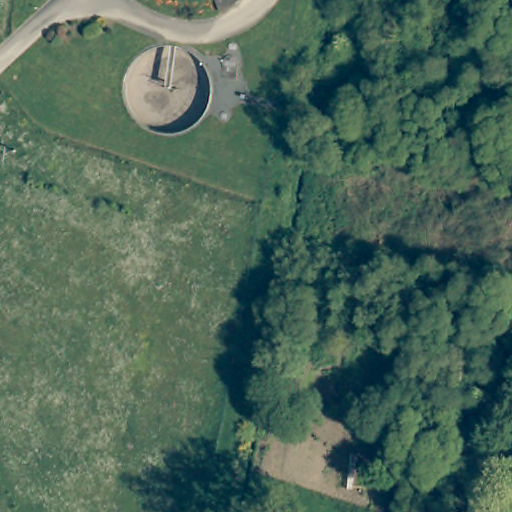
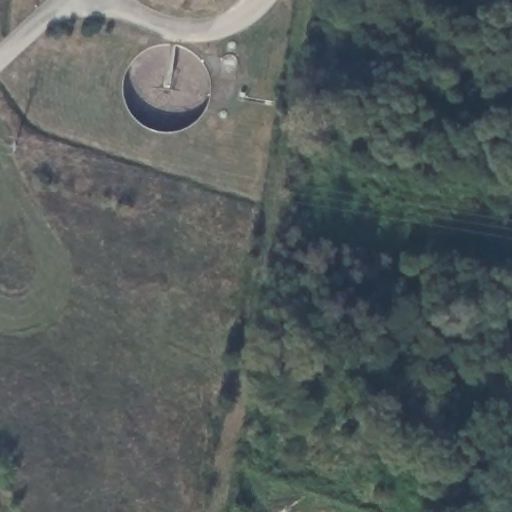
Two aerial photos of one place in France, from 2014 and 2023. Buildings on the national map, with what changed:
unchanged [(231,35),(232,37),(233,38),(233,40),(233,41),(232,43),(231,44),(230,45),(228,45),(227,45),(225,45),(224,44),(222,42),(222,40),(222,39),(224,37),(225,36),(226,35),(227,35),(230,35),(231,35)]
unchanged [(232,57),(234,60),(234,62),(234,65),(232,67),(231,69),(228,70),(226,71),(222,70),(221,69),(219,67),(217,64),(217,62),(217,59),(219,57),(221,55),(223,54),(226,54),(229,54),(231,55),(232,57)]
unchanged [(219,119),(219,120),(217,121),(217,123),(215,123),(214,124),(212,123),(211,123),(210,122),(209,120),(209,119),(209,117),(210,116),(211,115),(212,114),(214,113),(216,114),(217,114),(218,116),(219,117),(219,119)]

